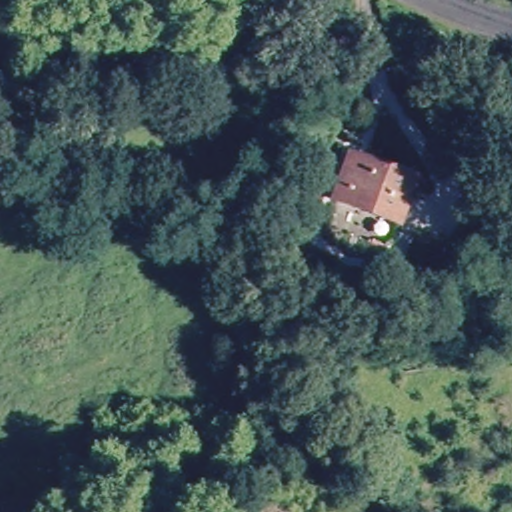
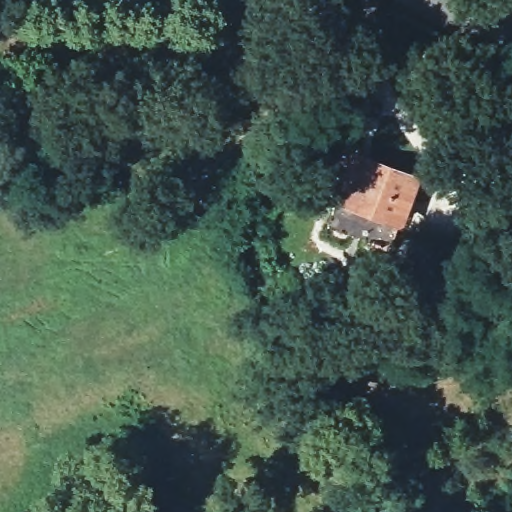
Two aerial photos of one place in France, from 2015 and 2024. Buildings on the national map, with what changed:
unchanged [(422,181),(403,227),(361,216),(347,237),(327,229),(332,205),(348,159),(422,181)]

